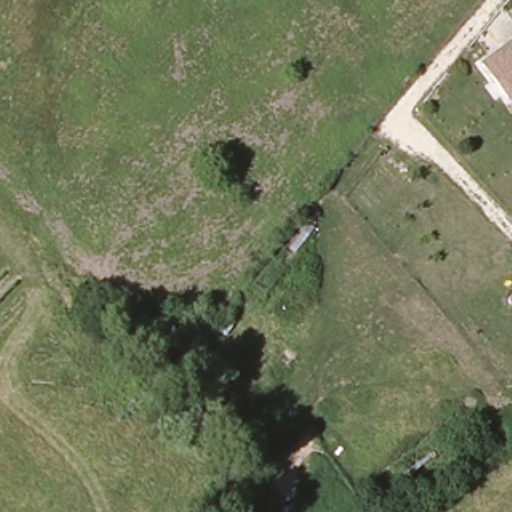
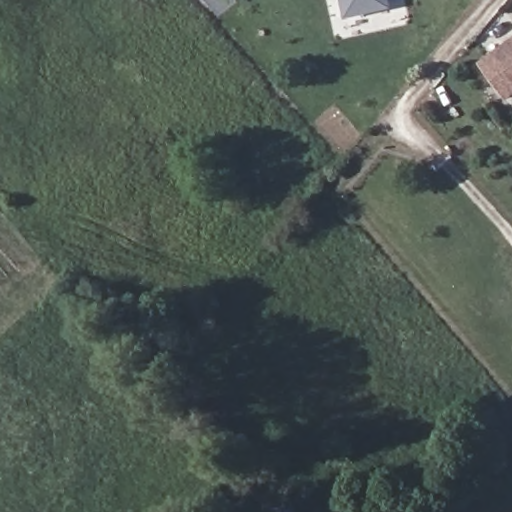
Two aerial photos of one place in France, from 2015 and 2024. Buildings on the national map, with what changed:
new [(341,0),(391,0),(393,9),(345,20),(341,0)]
unchanged [(506,94),(482,59),(512,37),(512,89),(506,94)]

